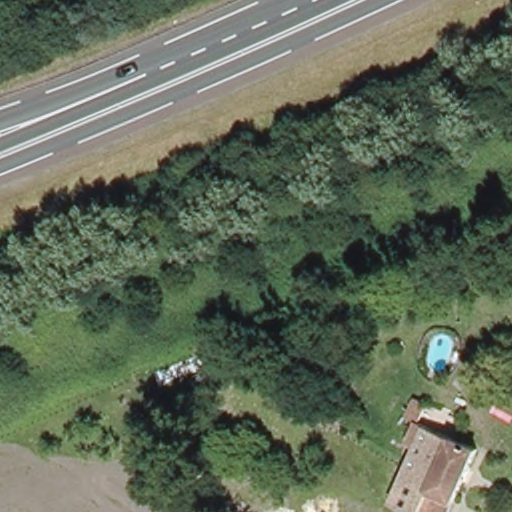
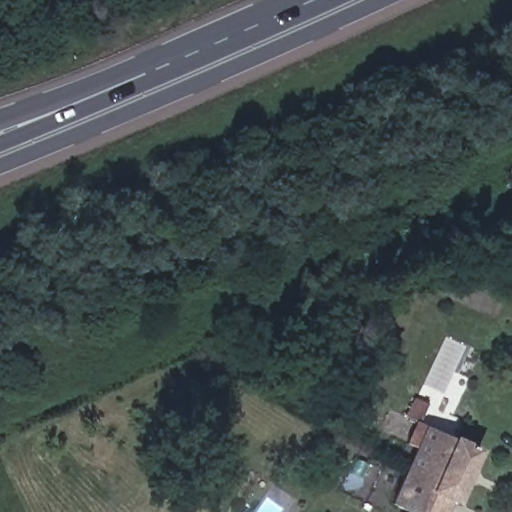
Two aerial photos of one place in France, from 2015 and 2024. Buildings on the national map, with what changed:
unchanged [(417,460),(431,427),(481,447),(453,512),(416,512),(398,502),(417,460)]

